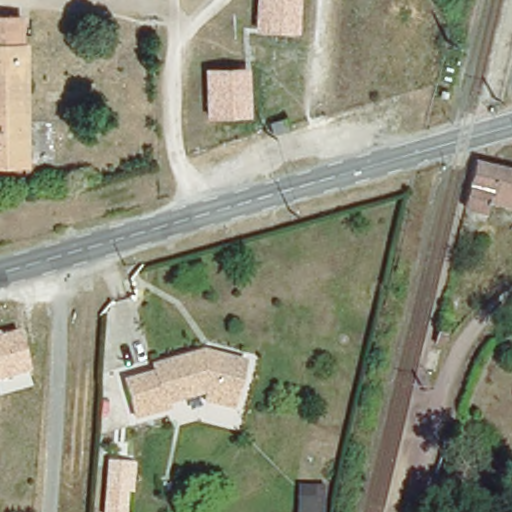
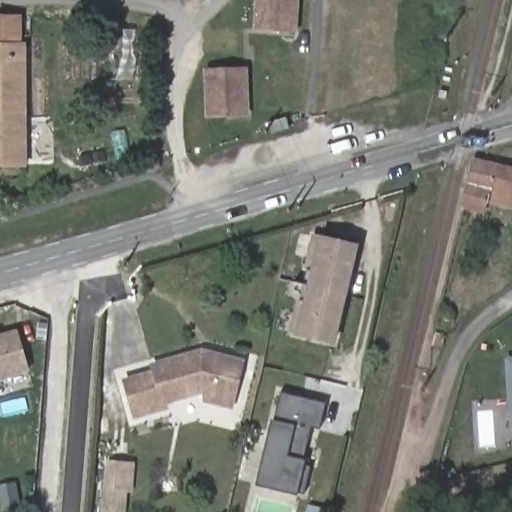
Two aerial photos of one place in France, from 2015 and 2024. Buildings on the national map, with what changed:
unchanged [(252,30),(254,0),(298,0),(296,32),(252,30)]
unchanged [(22,166),(0,166),(0,17),(20,18),(22,166)]
unchanged [(250,117),(205,117),(204,69),(247,68),(250,117)]
unchanged [(284,119),(287,130),(273,134),(271,123),(284,119)]
unchanged [(512,169),(512,206),(485,200),(482,212),(463,209),(462,209),(474,159),(512,169)]
new [(360,244),(335,344),(296,336),(318,234),(360,244)]
unchanged [(451,328),(441,327),(443,311),(453,313),(451,328)]
unchanged [(0,380),(0,332),(1,334),(20,329),(30,371),(0,380)]
unchanged [(442,343),(433,340),(435,332),(444,334),(442,343)]
unchanged [(204,397),(206,388),(166,398),(167,403),(137,412),(127,376),(159,366),(157,361),(204,346),(206,352),(215,350),(242,357),(232,396),(230,404),(204,397)]
new [(512,358),(512,426),(507,359),(512,358)]
new [(272,421),(275,422),(281,396),(324,406),(319,428),(312,426),(306,460),(304,466),(310,468),(304,495),(297,494),(257,485),(272,421)]
unchanged [(131,493),(127,493),(125,512),(103,512),(106,460),(135,462),(131,493)]
demolished [(298,486),(323,487),(322,512),(297,512),(298,486)]

